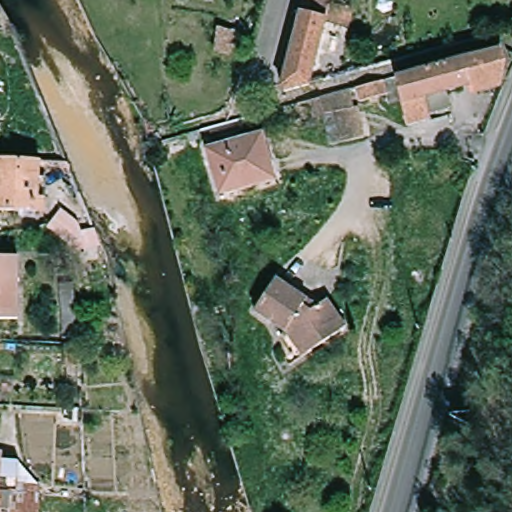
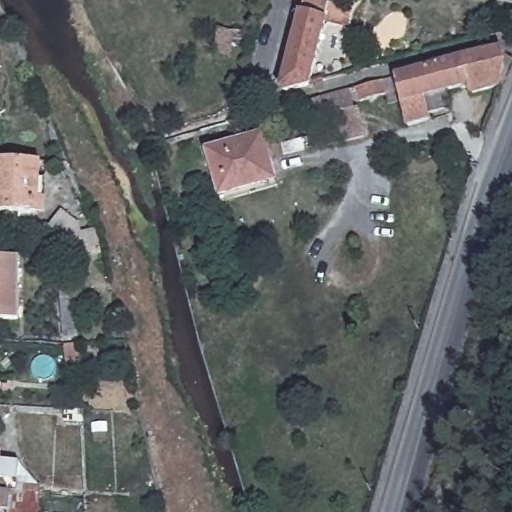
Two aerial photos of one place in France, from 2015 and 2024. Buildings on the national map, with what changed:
unchanged [(334,0),(333,4),(327,28),(313,89),(289,95),(285,93),(309,0),(334,0)]
unchanged [(358,10),(353,34),(327,28),(333,4),(334,0),(347,0),(345,6),(358,10)]
unchanged [(436,106),(437,109),(414,115),(410,97),(395,100),(393,91),(367,97),(365,84),(462,56),(504,41),(511,62),(505,81),(478,87),(477,79),(450,85),(453,102),(436,106)]
unchanged [(0,87),(0,48),(2,48),(0,87)]
unchanged [(326,95),(335,93),(362,85),(372,132),(347,137),(335,141),(326,95)]
unchanged [(222,195),(220,189),(207,144),(267,127),(278,170),(280,178),(222,195)]
unchanged [(47,162),(43,213),(0,210),(0,159),(15,160),(47,162)]
unchanged [(90,217),(95,227),(80,246),(70,239),(47,231),(55,217),(72,213),(81,225),(90,214),(90,217)]
unchanged [(20,320),(0,320),(0,258),(21,258),(20,320)]
unchanged [(73,332),(60,332),(58,267),(72,267),(73,332)]
demolished [(289,351),(295,346),(286,332),(292,324),(263,304),(287,271),(315,291),(310,299),(317,305),(327,299),(333,295),(352,323),(295,360),(289,351)]
unchanged [(74,342),(74,346),(75,366),(62,367),(62,345),(62,343),(74,342)]
unchanged [(0,456),(15,457),(13,489),(0,488),(0,456)]
unchanged [(5,507),(0,507),(0,490),(22,492),(22,489),(22,481),(37,482),(37,491),(37,498),(35,512),(5,512),(5,507)]

